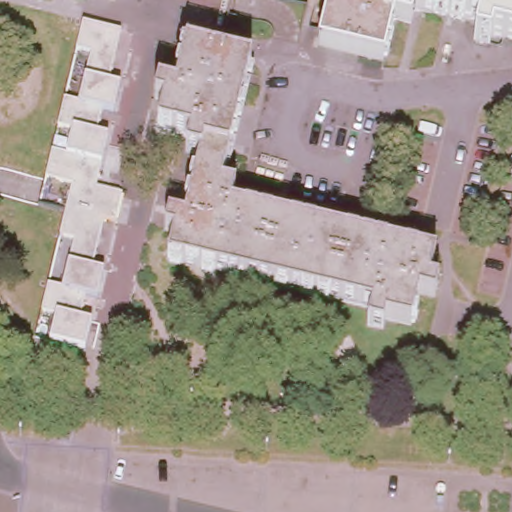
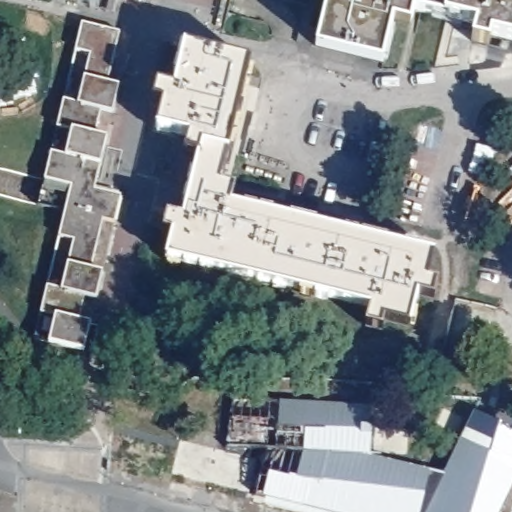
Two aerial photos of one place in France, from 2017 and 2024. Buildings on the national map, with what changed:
unchanged [(493,35),(490,44),(474,40),(478,24),(414,8),(411,22),(393,18),(383,60),(318,45),(329,0),(512,0),(512,40),(493,35)]
unchanged [(111,86),(121,88),(115,117),(104,114),(98,136),(109,139),(97,190),(123,197),(116,224),(105,221),(93,270),(105,272),(99,300),(87,297),(81,321),(93,324),(86,352),(37,340),(68,212),(41,205),(84,25),(123,34),(111,86)]
unchanged [(437,283),(433,297),(418,293),(409,325),(385,319),(381,330),(366,325),(371,308),(167,256),(174,229),(164,226),(169,209),(183,213),(200,144),(186,140),(191,124),(159,116),(163,101),(172,103),(186,45),(252,60),(221,182),(237,186),(232,203),(434,256),(427,280),(437,283)]
new [(471,413),(499,421),(512,428),(512,488),(502,512),(297,512),(288,508),(235,498),(235,490),(238,476),(242,472),(245,448),(229,447),(230,403),(372,407),(371,456),(382,462),(427,467),(427,475),(442,476),(465,433),(471,413)]

